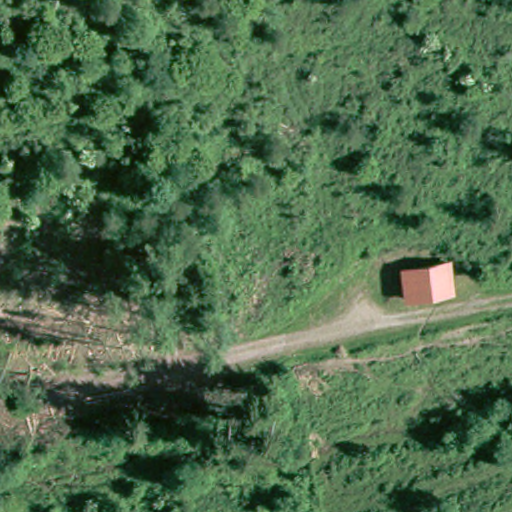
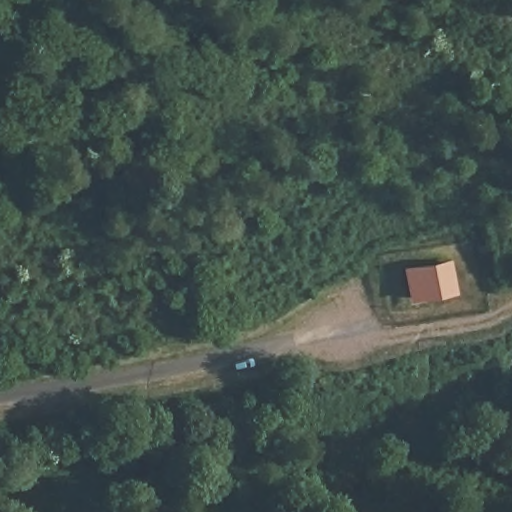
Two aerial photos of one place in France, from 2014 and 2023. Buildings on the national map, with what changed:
unchanged [(391,265),(434,261),(439,294),(397,301),(391,265)]

